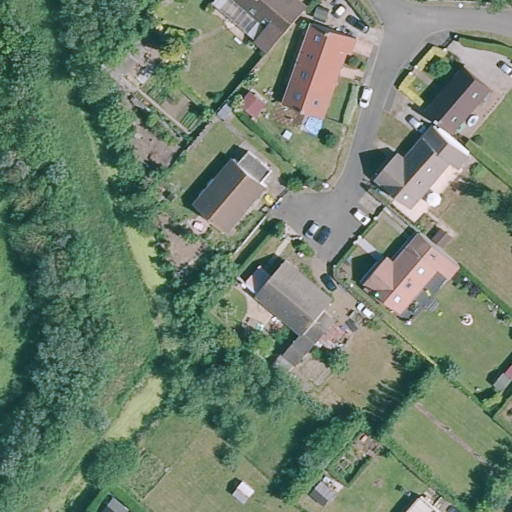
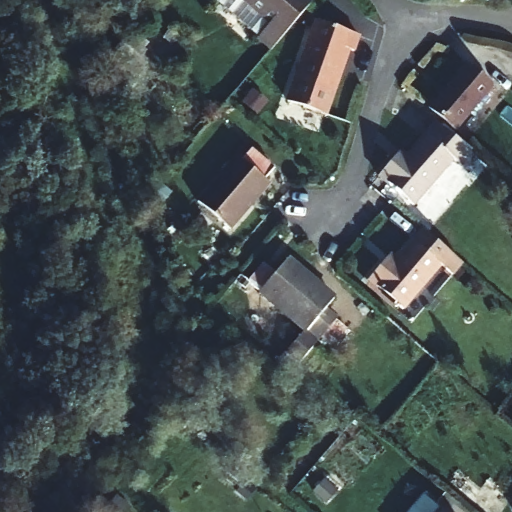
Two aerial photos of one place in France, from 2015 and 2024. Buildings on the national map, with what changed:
unchanged [(214,3),(217,0),(299,0),(309,8),(273,53),(214,3)]
unchanged [(361,35),(355,51),(350,50),(336,91),(328,114),(289,102),(297,79),(317,22),(361,35)]
unchanged [(132,54),(116,73),(104,61),(119,43),(132,54)]
unchanged [(467,67),(494,90),(457,135),(429,111),(467,67)]
unchanged [(473,159),(462,170),(454,165),(413,211),(379,180),(394,163),(404,170),(439,128),(473,159)]
unchanged [(273,177),(263,186),(269,193),(228,239),(196,209),(235,163),(241,167),(250,156),(273,177)]
unchanged [(459,269),(449,280),(438,271),(400,312),(366,284),(365,283),(379,267),(387,272),(393,265),(419,234),(459,269)]
unchanged [(301,335),(256,297),(284,263),(329,302),(324,312),(333,319),(289,381),(276,370),(301,335)]
unchanged [(429,506),(436,512),(424,512),(429,506)]

